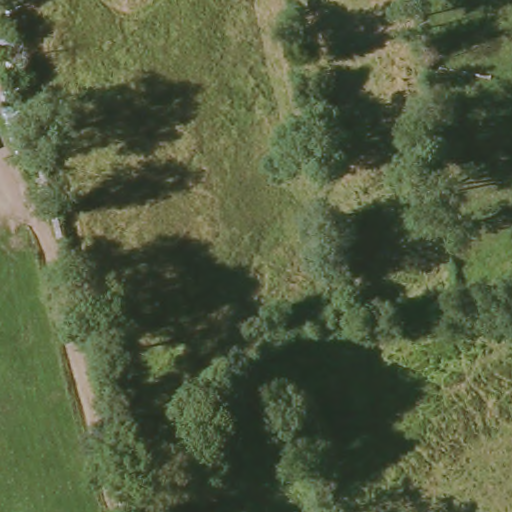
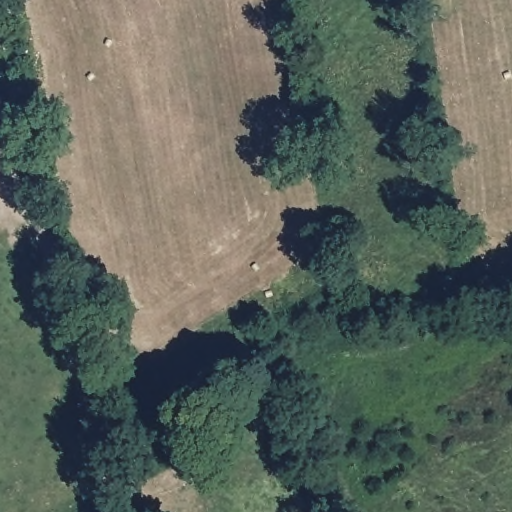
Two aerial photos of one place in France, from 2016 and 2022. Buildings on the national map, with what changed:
unchanged [(15,54),(0,56),(0,39),(10,37),(15,54)]

